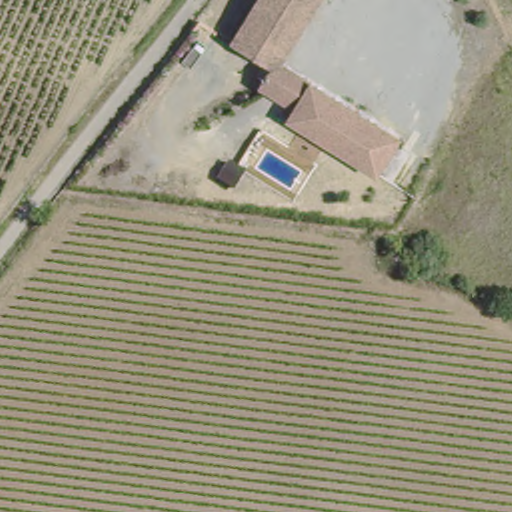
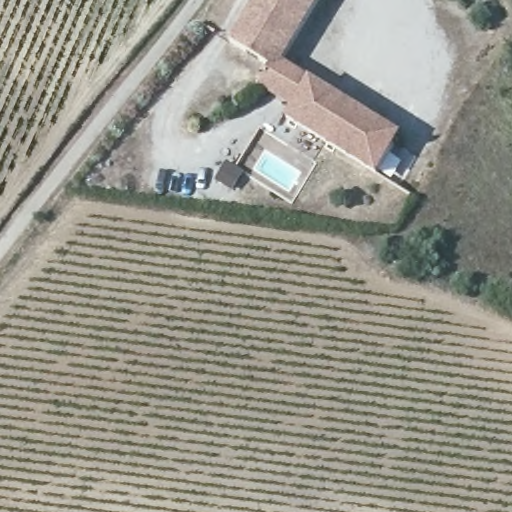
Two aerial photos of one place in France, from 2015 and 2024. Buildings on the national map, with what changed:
unchanged [(254,0),(321,0),(281,65),(278,71),(267,65),(228,41),(254,0)]
unchanged [(403,139),(378,179),(284,121),(291,110),(254,87),(267,65),(278,71),(281,65),(403,139)]

